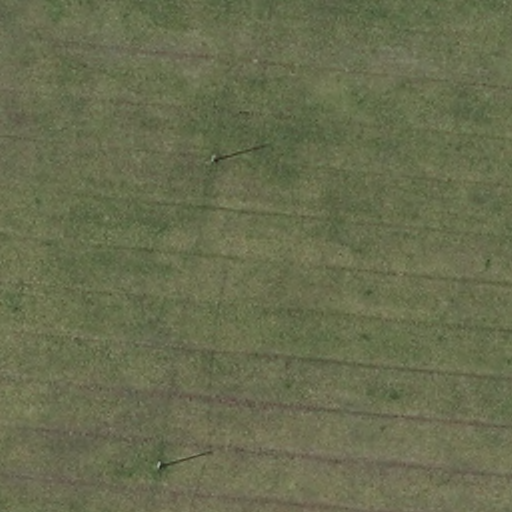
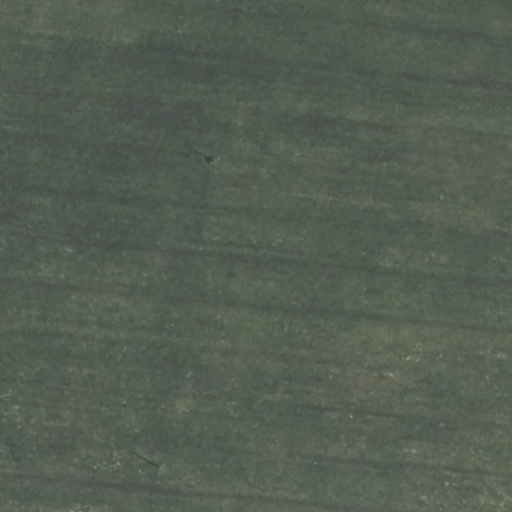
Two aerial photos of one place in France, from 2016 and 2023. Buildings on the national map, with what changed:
[]

